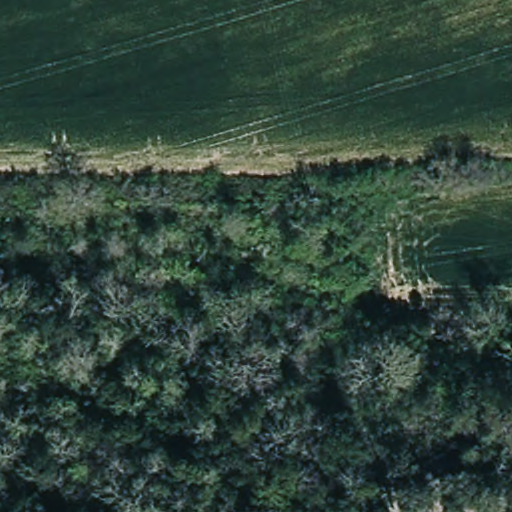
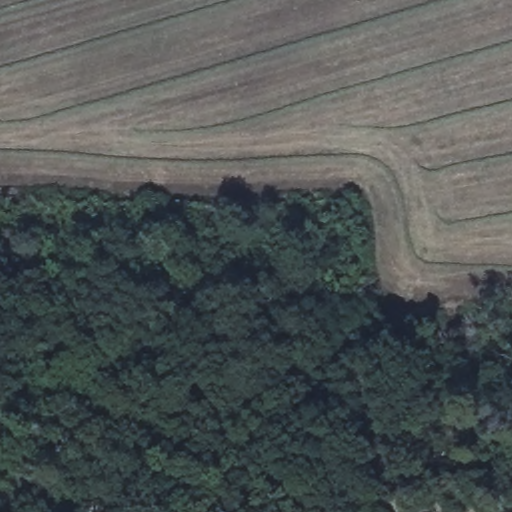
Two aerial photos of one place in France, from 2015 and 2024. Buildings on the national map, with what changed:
[]

